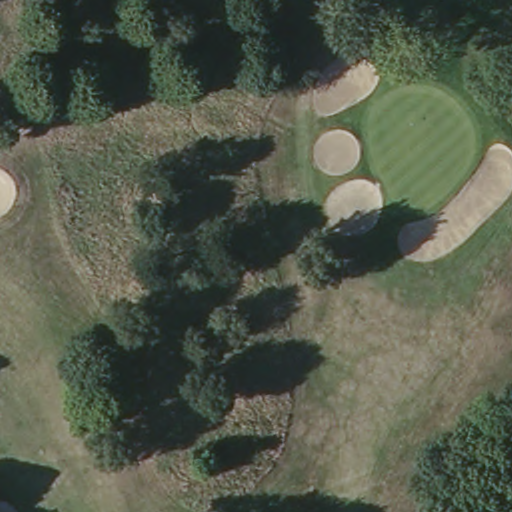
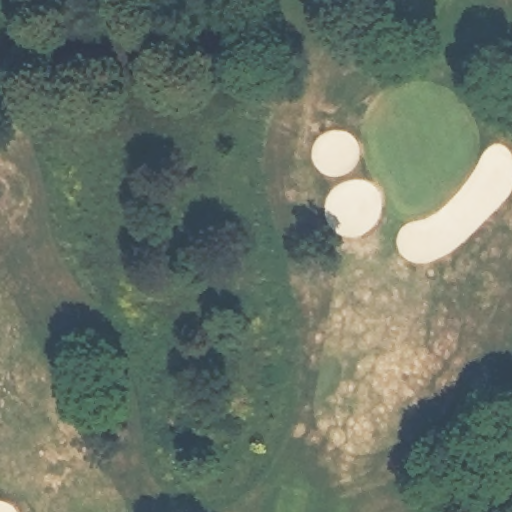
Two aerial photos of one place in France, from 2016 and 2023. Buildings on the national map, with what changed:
[]

